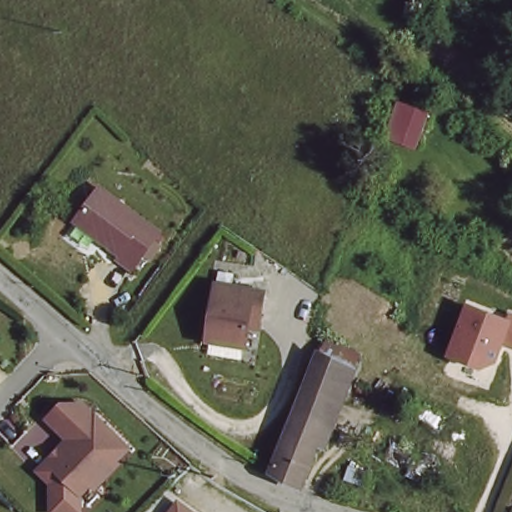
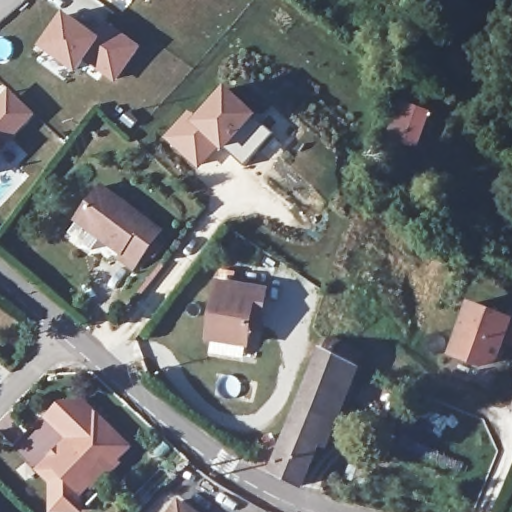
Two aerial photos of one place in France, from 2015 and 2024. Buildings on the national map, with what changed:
new [(125,0),(127,0),(126,1),(125,0)]
new [(116,83),(85,60),(76,73),(39,48),(64,11),(98,35),(107,21),(141,46),(116,83)]
new [(244,166),(227,149),(224,153),(220,149),(199,170),(165,139),(189,113),(195,118),(225,86),(257,116),(275,134),(244,166)]
new [(0,150),(0,99),(9,91),(35,115),(0,150)]
unchanged [(393,129),(399,104),(427,113),(420,147),(410,145),(390,141),(393,129)]
unchanged [(162,227),(134,266),(120,255),(123,250),(76,219),(101,186),(162,227)]
unchanged [(270,293),(266,314),(256,312),(250,345),(212,338),(223,284),(270,293)]
unchanged [(510,312),(512,312),(512,345),(506,343),(499,362),(482,368),(449,355),(469,303),(508,316),(510,312)]
unchanged [(359,360),(329,438),(319,435),(301,490),(269,476),(323,346),(359,360)]
unchanged [(52,464),(74,442),(52,421),(66,406),(86,406),(132,449),(119,463),(122,465),(98,490),(94,486),(84,497),(84,512),(56,512),(56,486),(43,473),(52,464)]
unchanged [(368,472),(365,485),(344,477),(348,465),(368,472)]
unchanged [(180,498),(199,512),(170,512),(180,498)]

